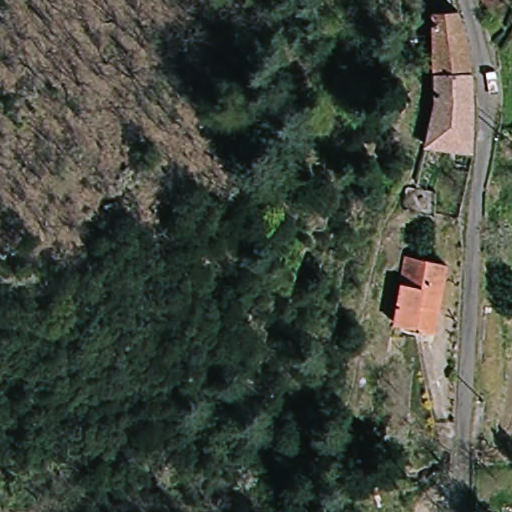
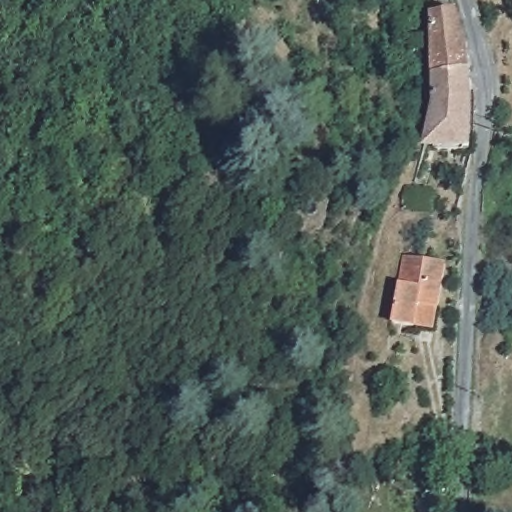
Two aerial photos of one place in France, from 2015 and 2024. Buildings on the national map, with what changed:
unchanged [(438,9),(460,2),(477,62),(449,70),(438,9)]
unchanged [(422,29),(433,28),(434,47),(409,47),(411,28),(422,29)]
unchanged [(453,96),(449,70),(477,62),(486,123),(483,146),(452,143),(453,96)]
unchanged [(433,331),(389,323),(400,261),(441,267),(433,331)]

